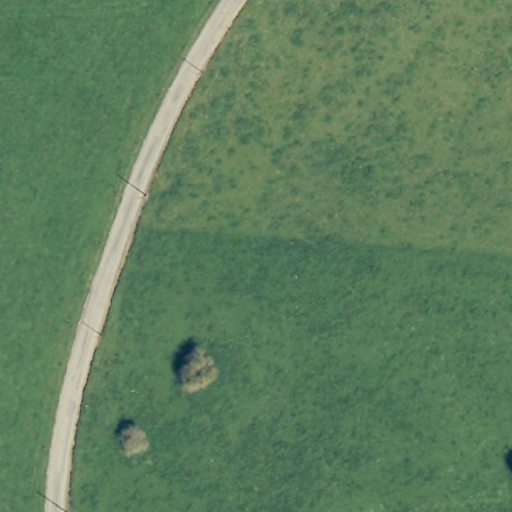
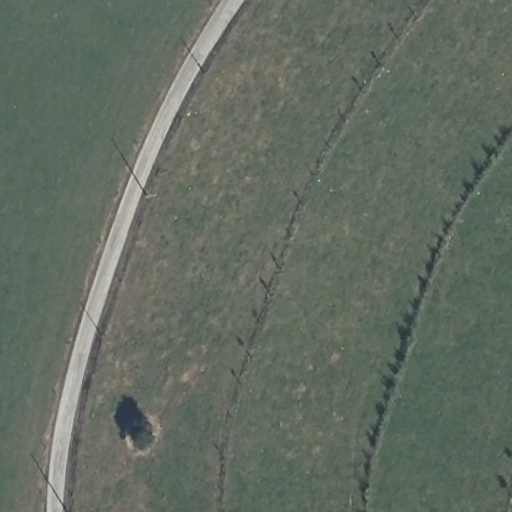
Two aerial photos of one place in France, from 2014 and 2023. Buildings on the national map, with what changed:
[]

